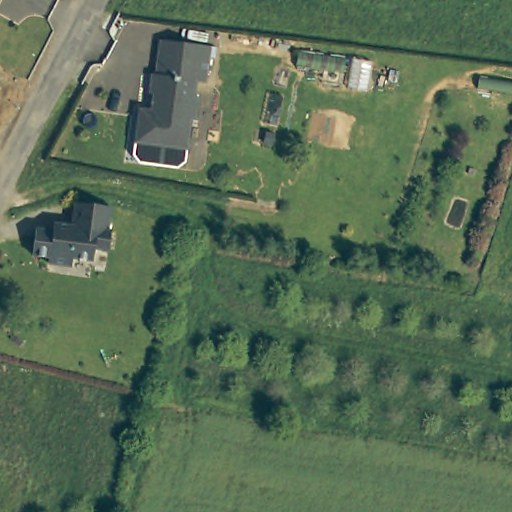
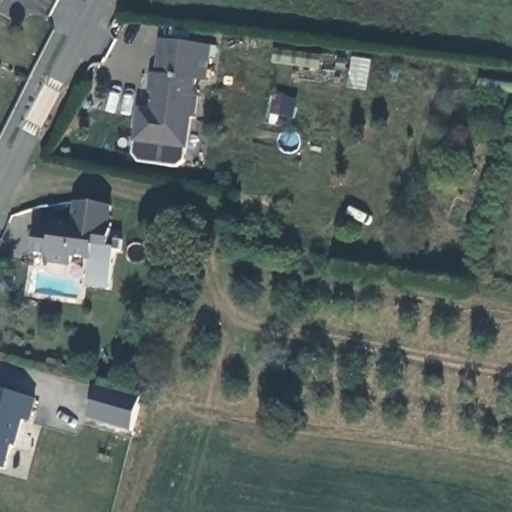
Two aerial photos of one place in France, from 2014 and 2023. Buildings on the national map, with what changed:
unchanged [(209,39),(206,75),(195,74),(194,88),(197,89),(195,114),(189,114),(185,156),(177,161),(139,158),(132,150),(137,104),(151,105),(152,87),(147,87),(149,69),(155,69),(158,34),(209,39)]
unchanged [(106,226),(109,227),(106,247),(92,245),(90,257),(70,254),(69,262),(46,259),(47,254),(31,251),(35,224),(51,226),(52,219),(70,221),(73,200),(91,200),(109,204),(106,226)]
new [(142,398),(132,431),(87,420),(96,385),(142,398)]
new [(29,423),(22,421),(16,448),(12,447),(6,470),(0,468),(0,390),(35,401),(29,423)]

